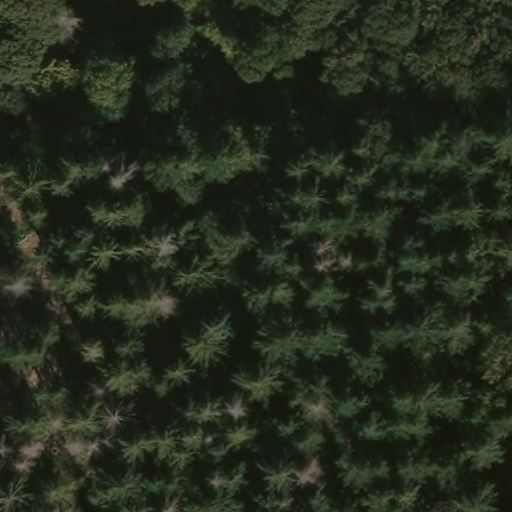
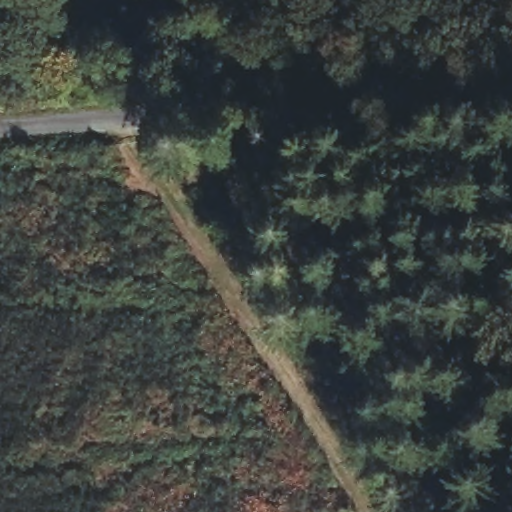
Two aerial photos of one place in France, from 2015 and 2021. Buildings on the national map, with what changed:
unchanged [(130,72),(130,90),(90,90),(89,72),(130,72)]

